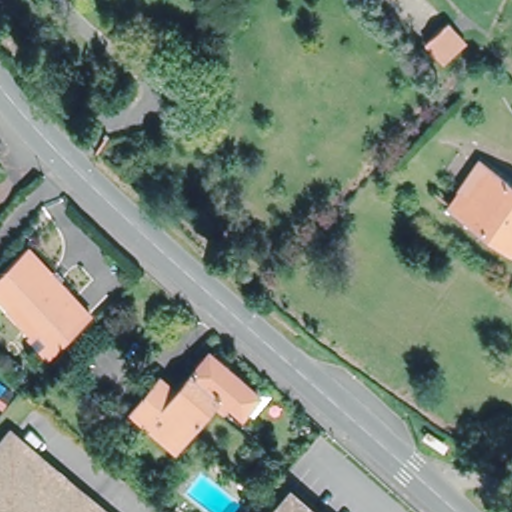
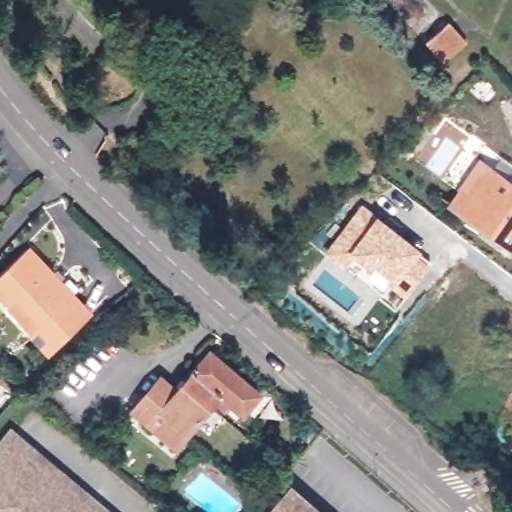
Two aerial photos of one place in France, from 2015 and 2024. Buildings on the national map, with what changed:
unchanged [(450,205),(463,188),(481,163),(487,168),(512,186),(512,248),(511,249),(450,205)]
new [(405,298),(390,285),(392,282),(356,256),(344,268),(324,252),(362,204),(378,216),(421,251),(418,256),(431,265),(405,298)]
unchanged [(85,312),(45,349),(0,300),(0,276),(28,250),(85,312)]
unchanged [(210,358),(259,400),(242,420),(219,400),(193,378),(210,358)]
unchanged [(196,428),(170,405),(176,397),(193,378),(219,400),(196,428)]
unchanged [(196,428),(175,452),(134,416),(161,384),(176,397),(170,405),(196,428)]
unchanged [(101,512),(0,512),(0,450),(11,437),(101,512)]
unchanged [(253,486),(244,478),(253,468),(261,475),(253,486)]
unchanged [(311,512),(275,512),(290,494),(311,512)]

